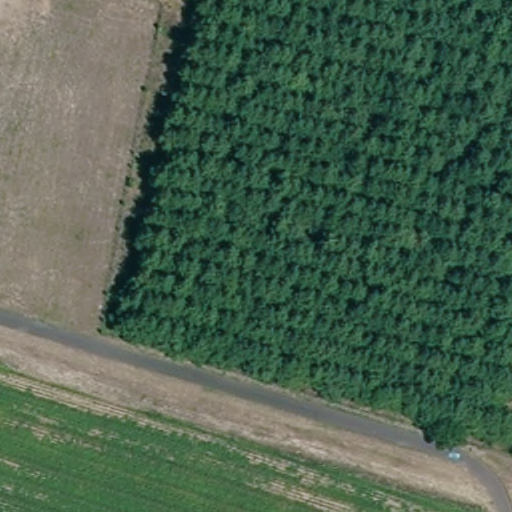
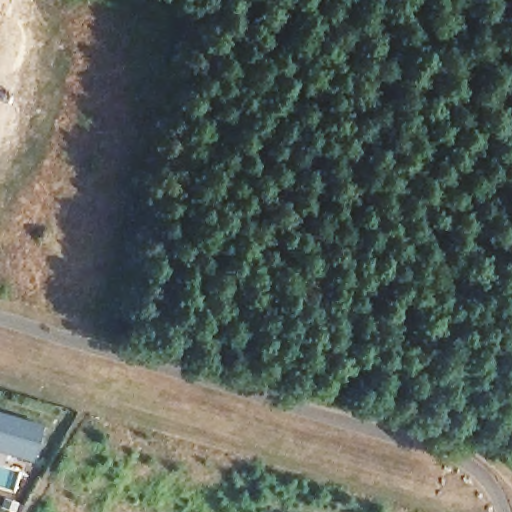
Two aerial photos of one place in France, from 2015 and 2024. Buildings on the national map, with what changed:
new [(32,462),(0,453),(0,412),(42,425),(32,462)]

